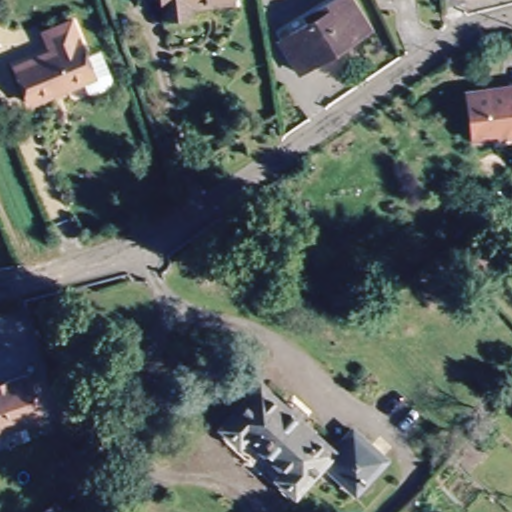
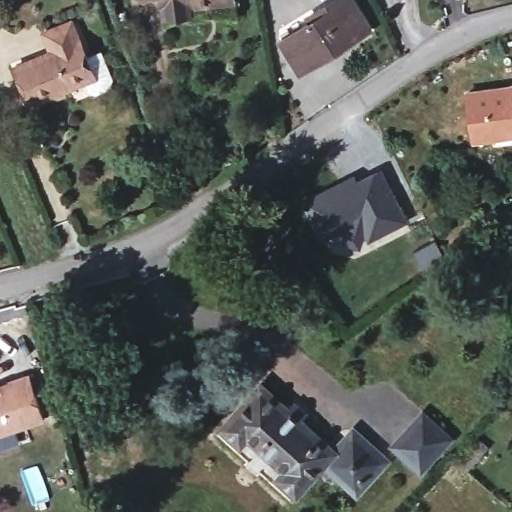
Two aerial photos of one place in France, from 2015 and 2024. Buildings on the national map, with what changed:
unchanged [(170,22),(166,1),(144,5),(143,0),(237,0),(221,3),(193,7),(193,18),(170,22)]
unchanged [(284,44),(312,29),(308,19),(343,0),(351,0),(371,36),(300,76),(284,44)]
unchanged [(107,69),(106,75),(103,80),(91,86),(86,84),(81,74),(75,78),(26,104),(7,68),(44,48),(36,33),(57,21),(65,18),(80,49),(94,43),(107,69)]
unchanged [(497,140),(476,143),(471,93),(512,89),(512,139),(497,140)]
new [(359,173),(360,176),(382,166),(410,222),(363,250),(348,257),(334,255),(329,257),(299,201),(359,173)]
unchanged [(0,434),(0,389),(1,389),(6,386),(7,382),(32,373),(47,417),(0,434)]
unchanged [(366,506),(330,472),(300,502),(281,484),(289,477),(249,439),(240,447),(224,432),(268,386),(346,463),(364,445),(396,476),(366,506)]
unchanged [(444,424),(467,447),(437,480),(412,456),(444,424)]
unchanged [(499,444),(477,468),(466,458),(488,434),(499,444)]

